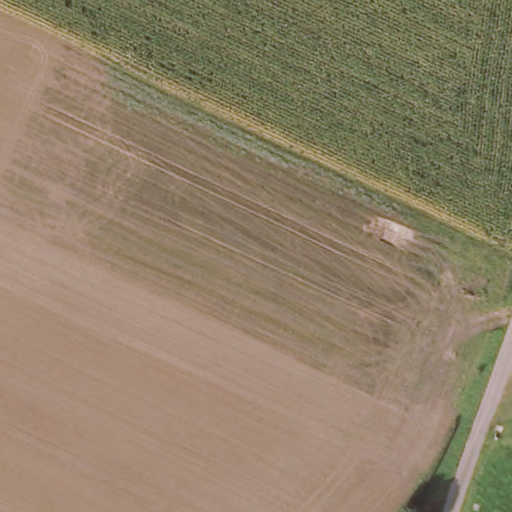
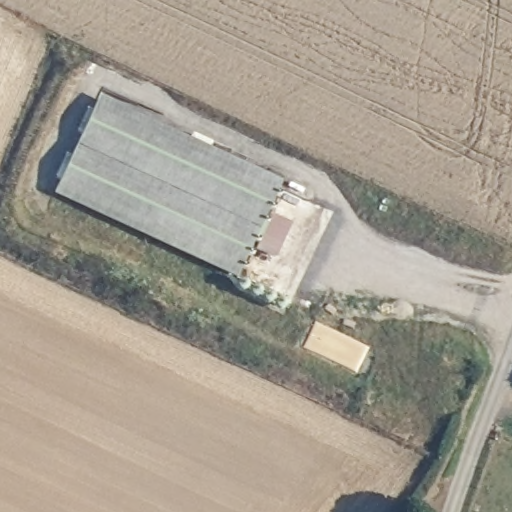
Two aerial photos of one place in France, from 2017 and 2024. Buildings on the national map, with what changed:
new [(95,96),(277,183),(234,275),(52,189),(95,96)]

